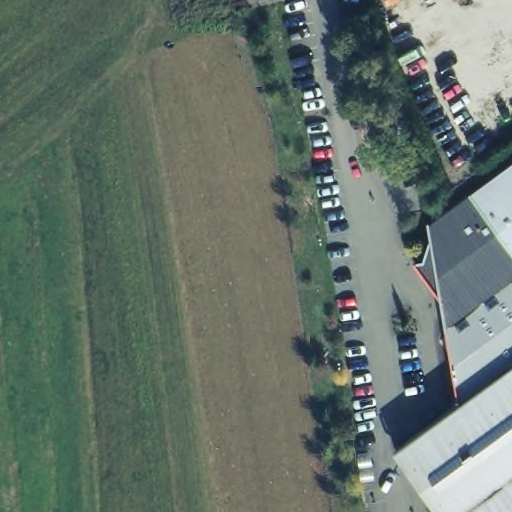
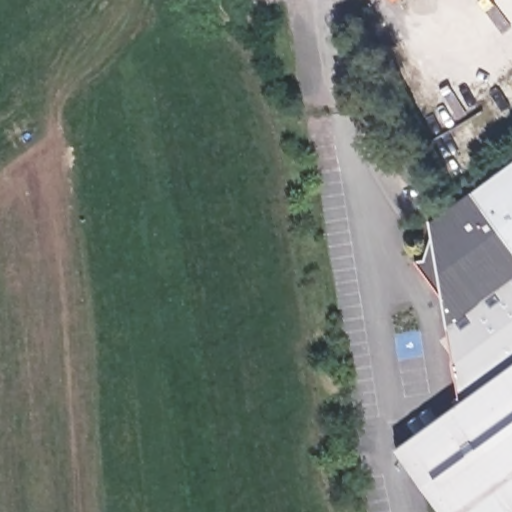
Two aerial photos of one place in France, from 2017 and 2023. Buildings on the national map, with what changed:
unchanged [(445,326),(440,295),(413,259),(414,258),(415,258),(433,255),(430,236),(432,236),(434,238),(512,175),(512,276),(447,323),(447,326),(445,326)]
unchanged [(448,512),(400,445),(512,362),(512,512),(448,512)]

